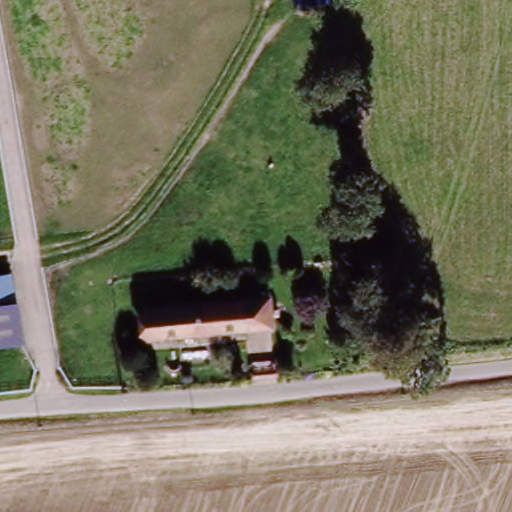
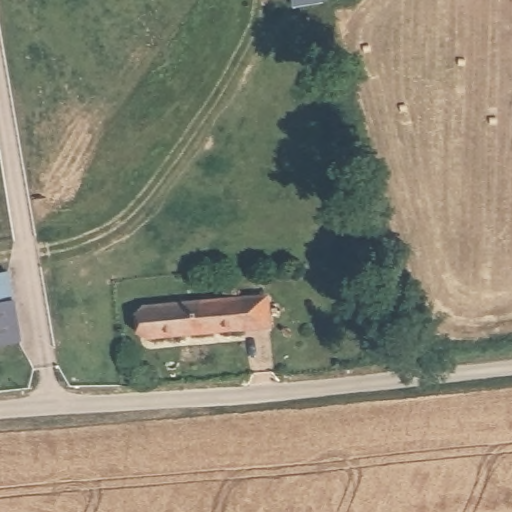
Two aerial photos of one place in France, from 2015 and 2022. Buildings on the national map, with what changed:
unchanged [(326,8),(291,11),(289,0),(325,0),(326,8)]
unchanged [(24,343),(0,346),(0,276),(10,275),(17,302),(24,343)]
unchanged [(144,342),(141,307),(270,297),(275,332),(144,342)]

